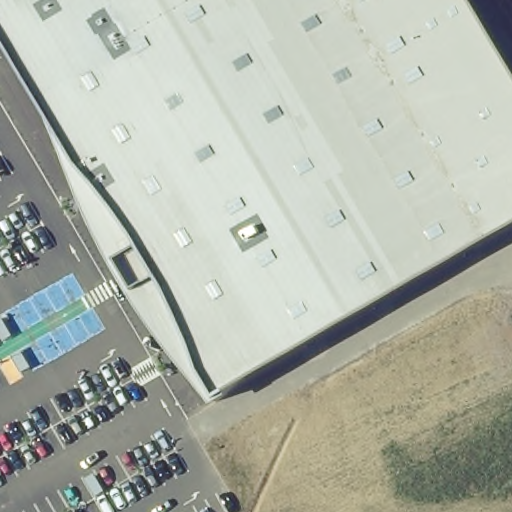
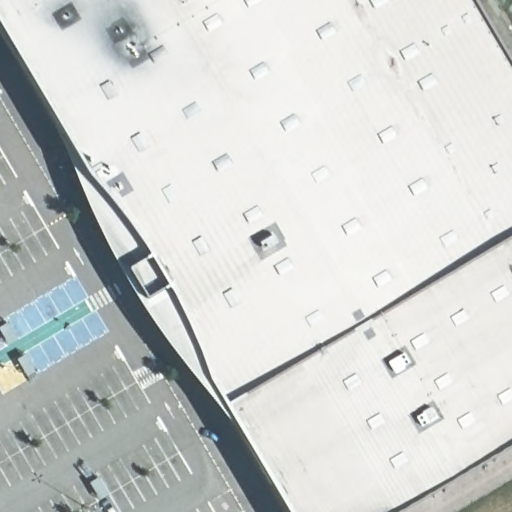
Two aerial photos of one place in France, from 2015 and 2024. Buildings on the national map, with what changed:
unchanged [(512,228),(231,395),(234,401),(217,410),(164,339),(142,307),(116,264),(94,220),(81,191),(57,127),(0,30),(0,0),(470,0),(512,71),(512,228)]
new [(217,410),(234,401),(231,395),(512,228),(512,437),(384,512),(280,512),(217,410)]

